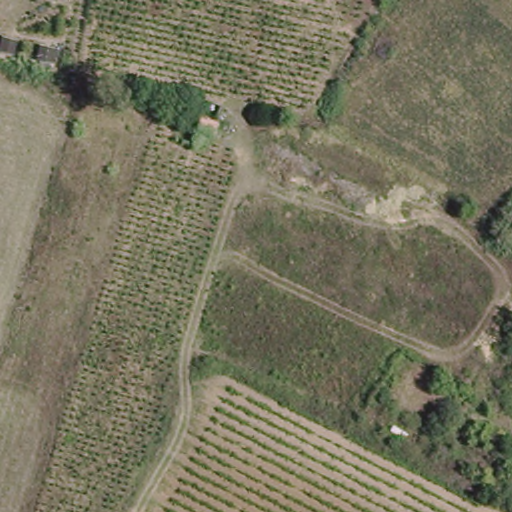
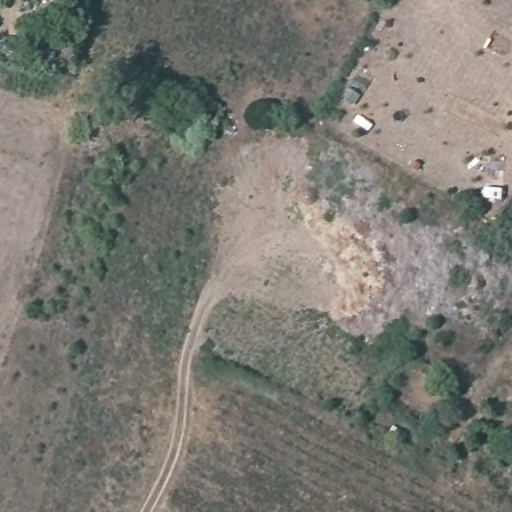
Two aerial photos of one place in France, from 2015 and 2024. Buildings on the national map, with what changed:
unchanged [(202,118),(216,121),(213,134),(198,130),(202,118)]

